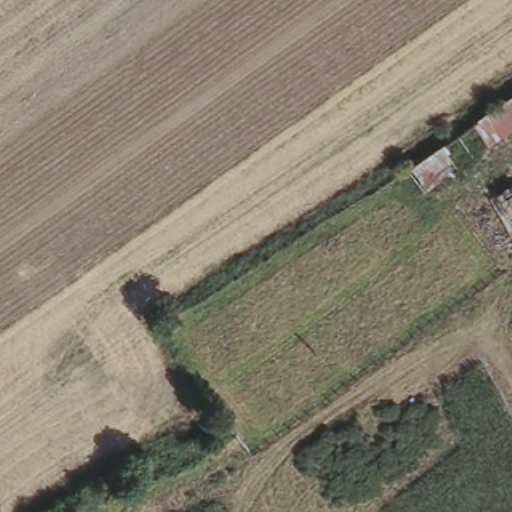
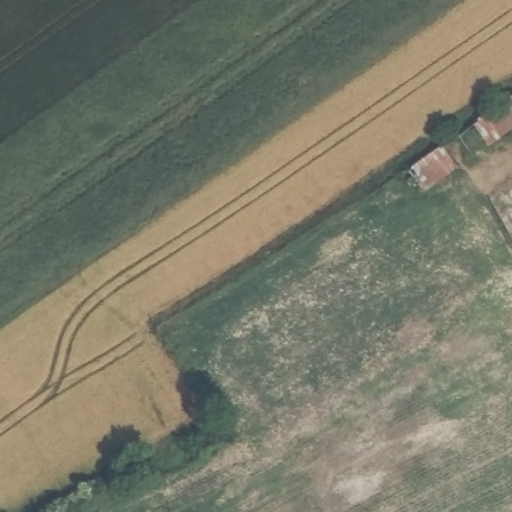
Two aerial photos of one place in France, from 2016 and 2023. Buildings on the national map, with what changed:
unchanged [(403,168),(512,92),(512,130),(422,192),(403,168)]

